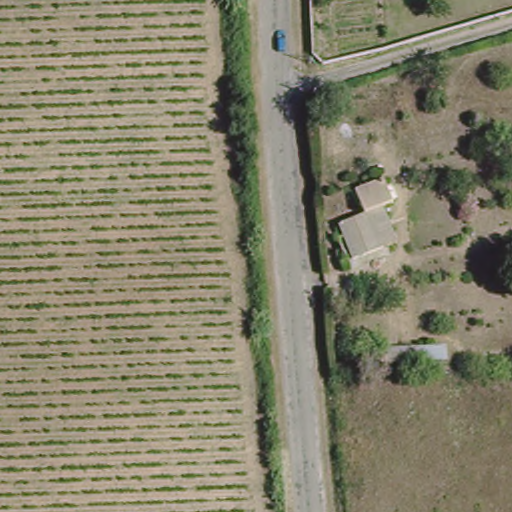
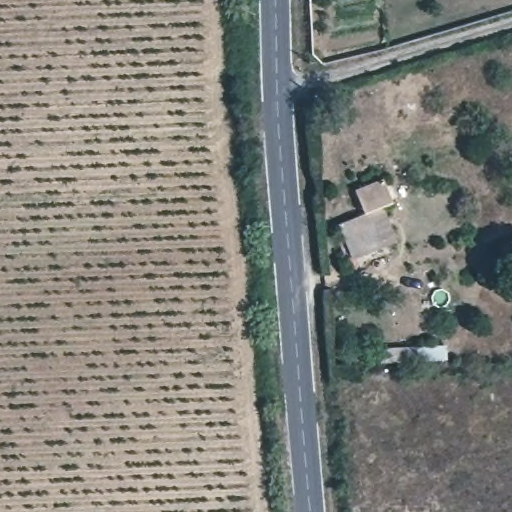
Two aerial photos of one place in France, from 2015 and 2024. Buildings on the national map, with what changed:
unchanged [(382,250),(351,260),(340,224),(364,216),(355,193),(385,182),(393,209),(383,213),(386,225),(394,247),(382,250)]
unchanged [(372,345),(445,344),(445,363),(373,366),(372,345)]

